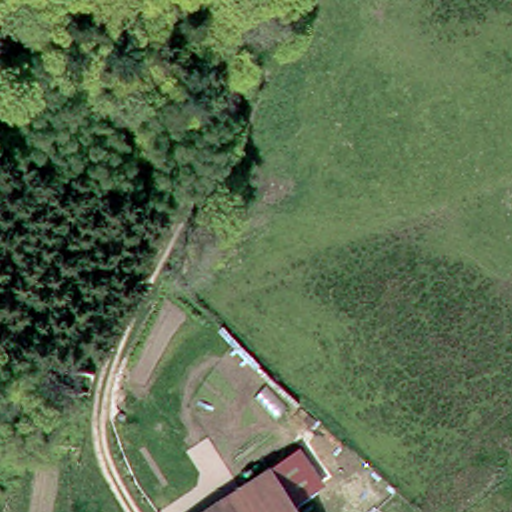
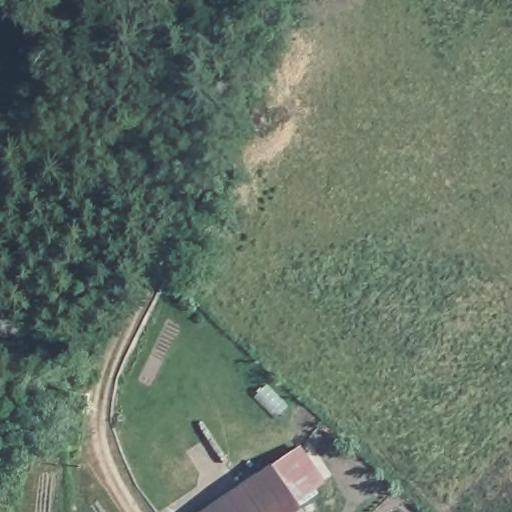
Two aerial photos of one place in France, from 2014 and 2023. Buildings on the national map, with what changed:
unchanged [(277,469),(305,450),(328,483),(300,502),(277,469)]
unchanged [(300,502),(307,512),(213,512),(277,469),(300,502)]

